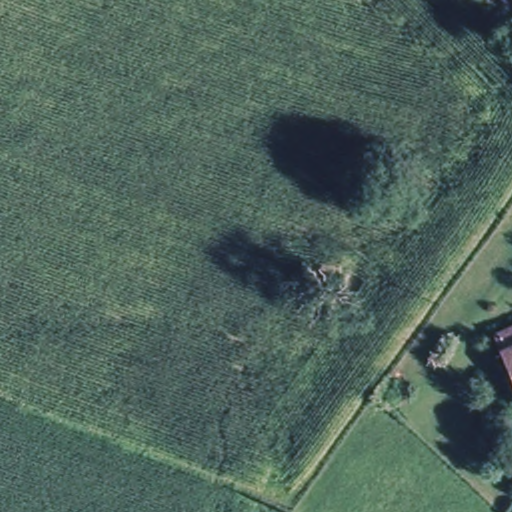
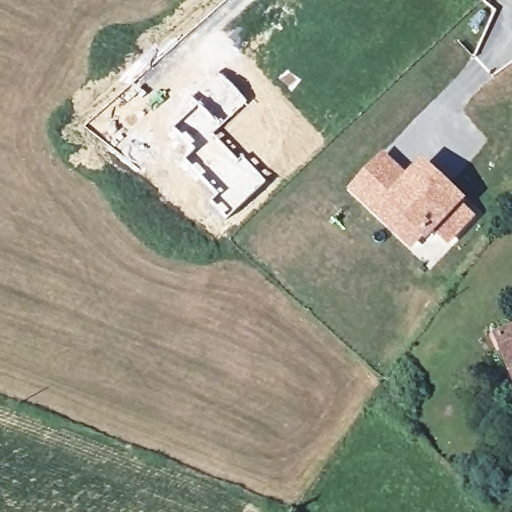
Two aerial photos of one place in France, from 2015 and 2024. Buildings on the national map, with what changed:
new [(408,176),(423,159),(468,200),(464,204),(477,215),(450,245),(436,233),(428,240),(423,235),(412,250),(348,190),(385,153),(408,176)]
unchanged [(498,336),(512,330),(512,369),(498,336)]

